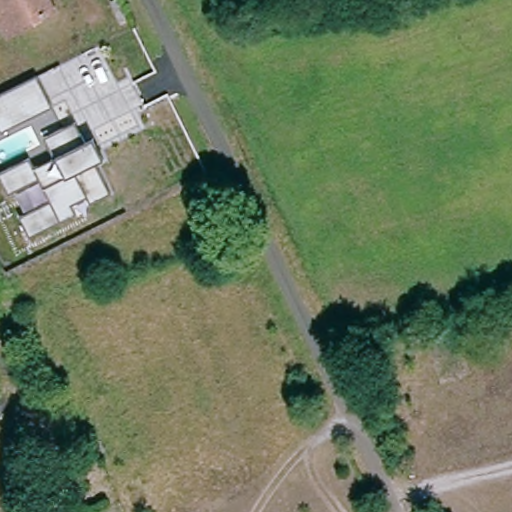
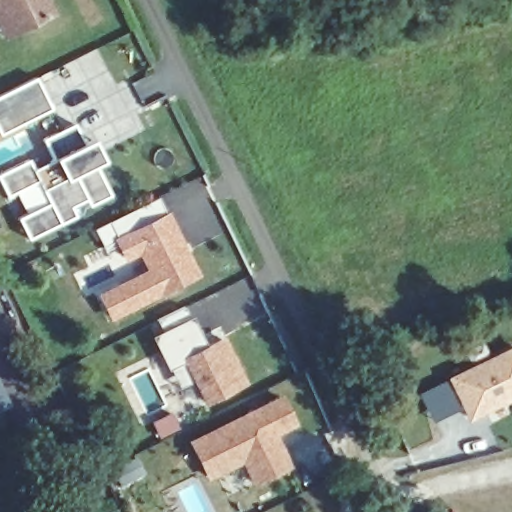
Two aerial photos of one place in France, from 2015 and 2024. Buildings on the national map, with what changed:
unchanged [(45,13),(16,27),(0,35),(0,0),(38,0),(45,13)]
unchanged [(38,78),(52,107),(1,132),(0,130),(0,97),(38,78)]
unchanged [(30,161),(34,171),(54,161),(44,140),(75,126),(86,146),(92,142),(101,161),(95,165),(109,195),(90,205),(86,199),(71,207),(75,216),(29,238),(20,219),(26,215),(15,192),(7,196),(0,181),(0,176),(30,161)]
new [(197,275),(112,317),(101,297),(136,279),(118,241),(169,215),(197,275)]
new [(190,318),(193,316),(208,343),(225,337),(247,382),(206,405),(195,385),(184,390),(172,367),(169,368),(152,337),(164,330),(159,319),(186,306),(190,318)]
new [(447,377),(512,346),(512,401),(469,422),(447,377)]
new [(7,403),(0,407),(0,390),(7,403)]
new [(298,426),(279,436),(294,467),(254,486),(243,464),(209,482),(188,441),(282,393),(298,426)]

